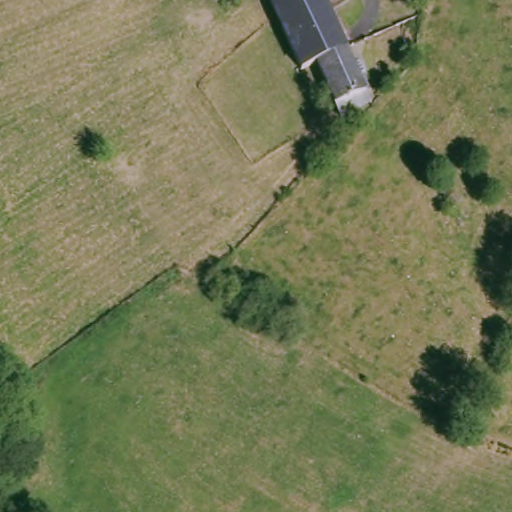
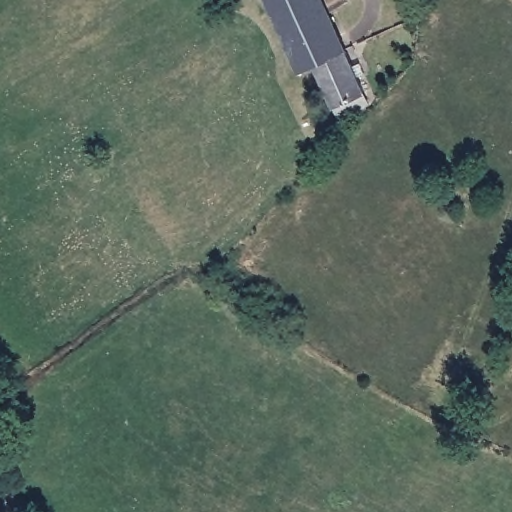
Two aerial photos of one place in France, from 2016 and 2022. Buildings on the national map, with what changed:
unchanged [(271,0),(322,0),(372,105),(344,119),(320,68),(308,74),(271,0)]

